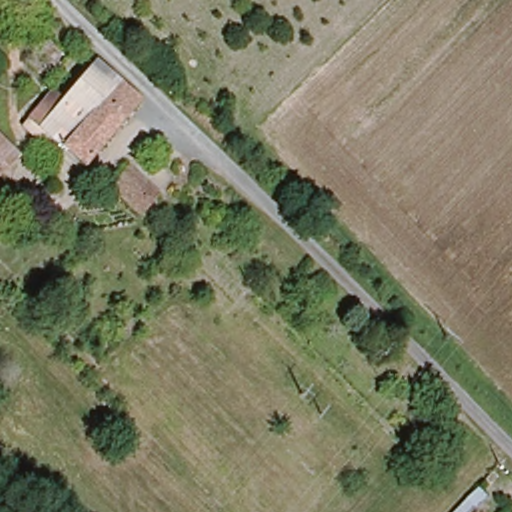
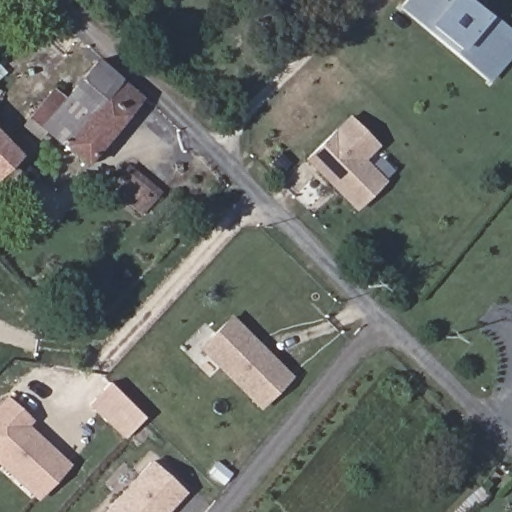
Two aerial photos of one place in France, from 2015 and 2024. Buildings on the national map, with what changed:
new [(254,0),(262,0),(257,4),(254,0)]
new [(441,0),(466,0),(512,39),(478,65),(424,21),(441,0)]
unchanged [(85,167),(27,119),(85,56),(141,100),(85,167)]
new [(304,160),(349,114),(378,145),(366,160),(386,182),(356,212),(304,160)]
unchanged [(8,167),(0,174),(0,141),(16,158),(8,167)]
unchanged [(159,190),(141,211),(107,183),(126,163),(159,190)]
new [(231,315),(293,377),(260,411),(197,349),(231,315)]
new [(111,384),(146,420),(127,440),(92,406),(111,384)]
new [(32,422),(27,426),(37,436),(69,466),(40,498),(0,460),(0,410),(9,400),(32,422)]
new [(149,461),(185,494),(169,512),(103,512),(149,461)]

